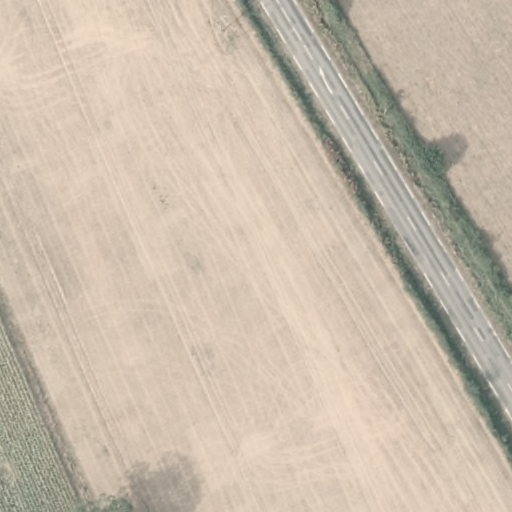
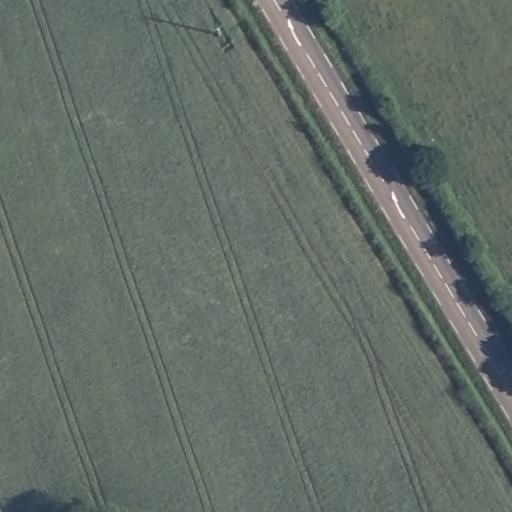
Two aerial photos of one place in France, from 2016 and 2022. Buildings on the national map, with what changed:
[]

